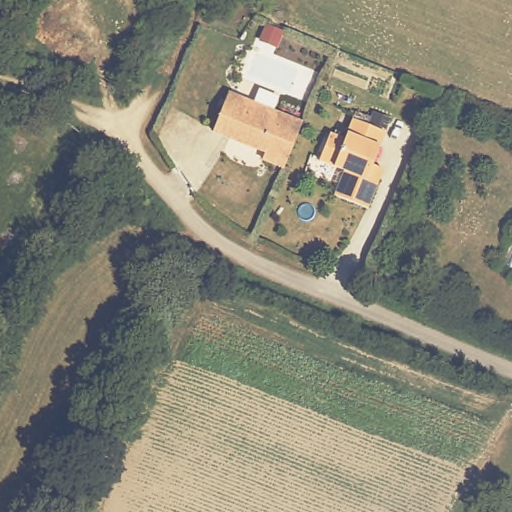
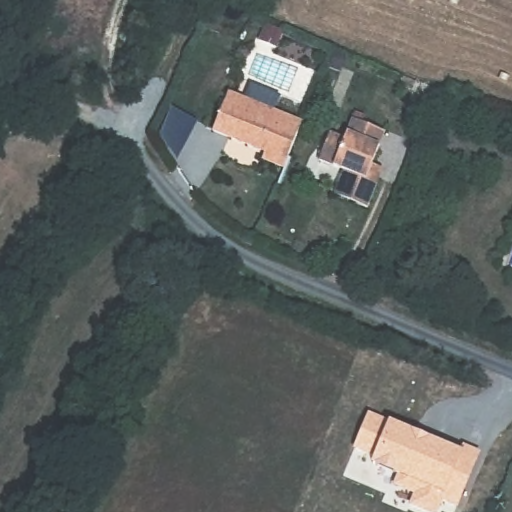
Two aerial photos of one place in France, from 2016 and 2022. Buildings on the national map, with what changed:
unchanged [(261,153),(264,146),(210,124),(226,88),(299,119),(281,161),(261,153)]
unchanged [(331,163),(319,158),(331,131),(343,135),(351,116),(382,130),(369,162),(383,168),(379,179),(367,208),(332,194),(336,183),(325,178),(331,163)]
new [(389,419),(431,438),(433,433),(481,451),(458,505),(441,499),(436,512),(430,512),(409,504),(412,495),(391,485),(396,473),(369,462),(371,456),(352,448),(366,411),(389,419)]

